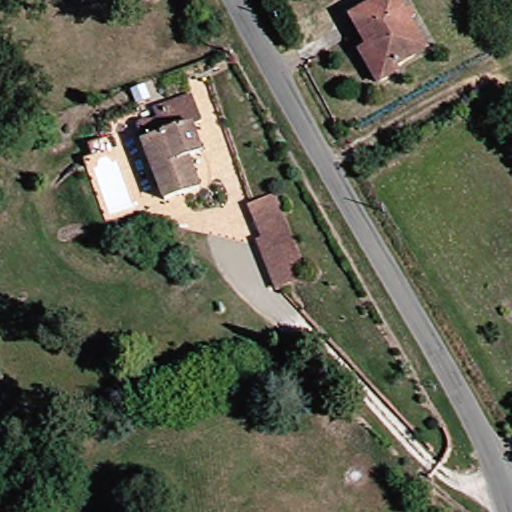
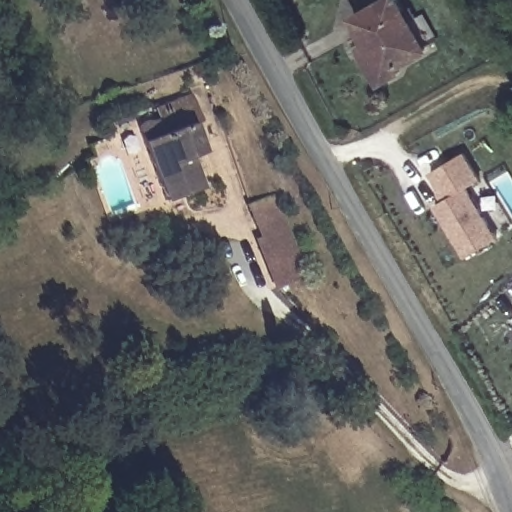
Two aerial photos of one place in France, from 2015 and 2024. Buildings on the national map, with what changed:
unchanged [(406,66),(383,79),(365,47),(373,42),(356,14),(381,0),(403,0),(426,46),(402,60),(406,66)]
unchanged [(206,115),(194,120),(212,162),(200,167),(205,180),(169,195),(138,121),(152,115),(155,122),(165,118),(160,105),(170,101),(195,91),(206,115)]
new [(460,157),(473,180),(461,187),(486,230),(457,245),(435,206),(447,200),(431,174),(460,157)]
unchanged [(265,237),(252,204),(276,194),(310,275),(281,287),(260,239),(265,237)]

